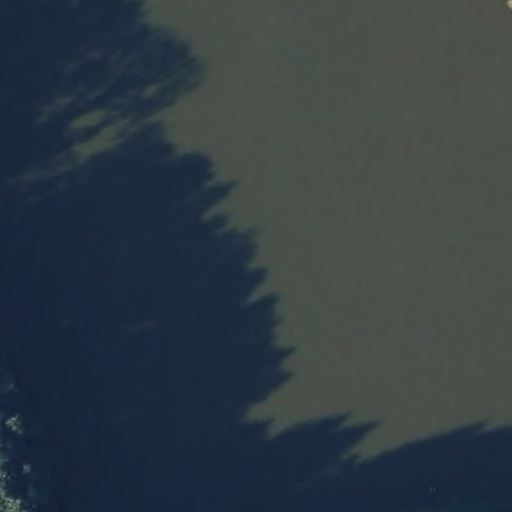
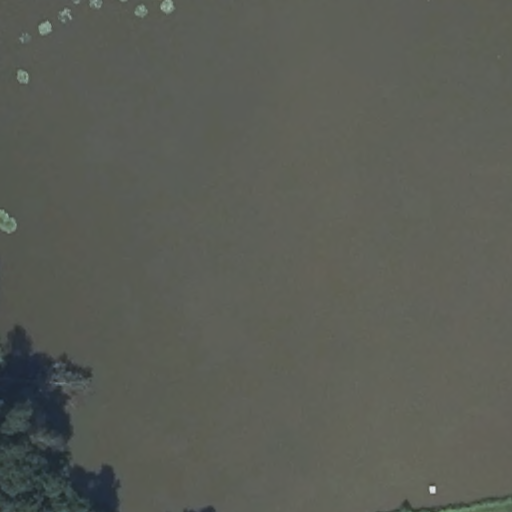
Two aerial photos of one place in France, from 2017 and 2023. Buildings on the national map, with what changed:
[]

